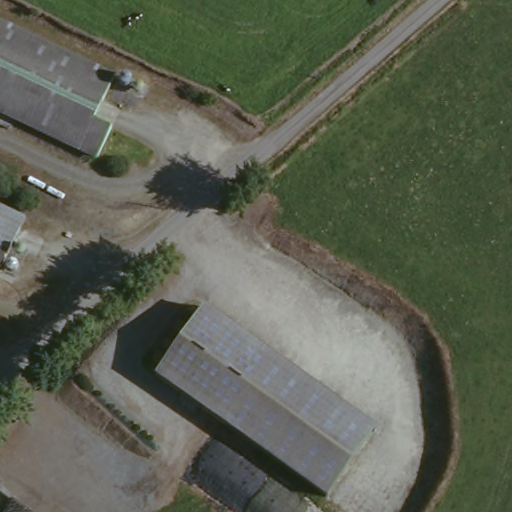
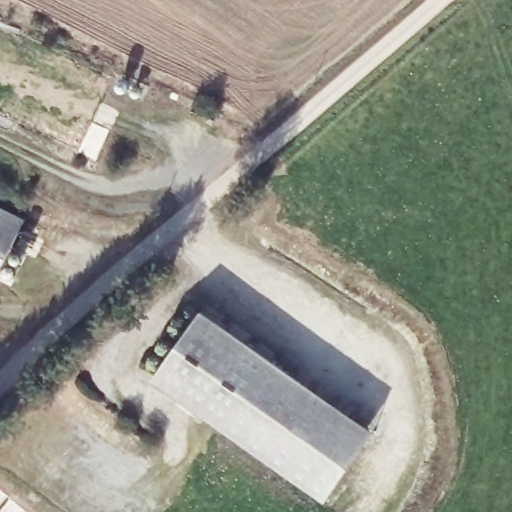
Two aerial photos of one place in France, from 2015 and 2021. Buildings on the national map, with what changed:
demolished [(0,119),(0,29),(19,38),(106,81),(86,122),(110,134),(94,165),(0,119)]
unchanged [(22,227),(0,273),(0,217),(22,227)]
unchanged [(206,309),(376,432),(327,500),(157,377),(206,309)]

